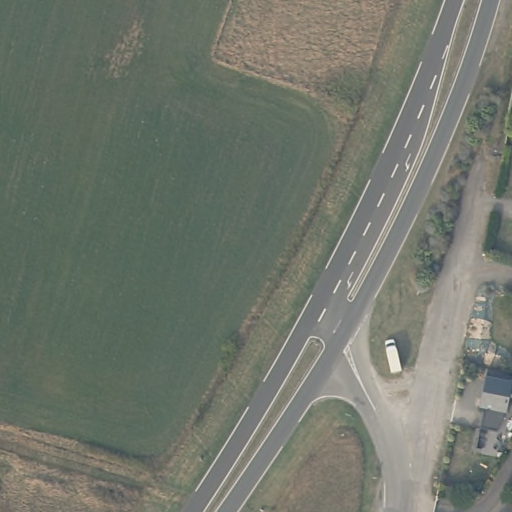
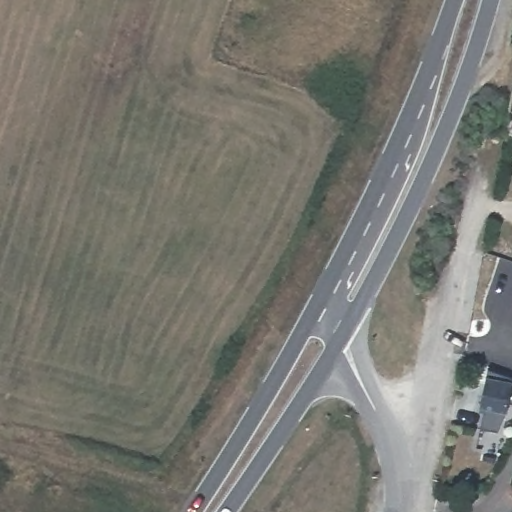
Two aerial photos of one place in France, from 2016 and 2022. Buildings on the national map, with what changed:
unchanged [(512,382),(512,404),(510,407),(505,405),(505,416),(493,435),(476,432),(480,411),(475,410),(483,372),(511,382),(512,382)]

